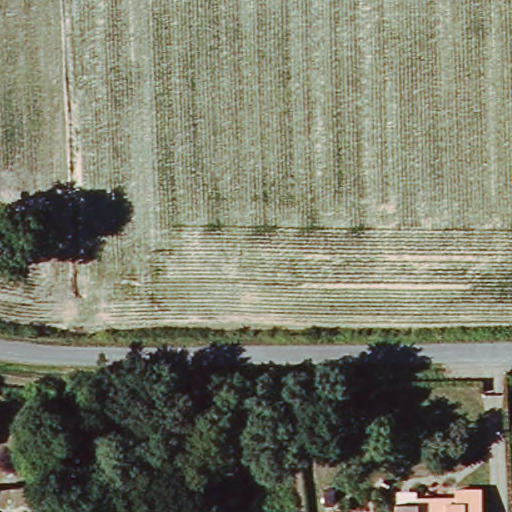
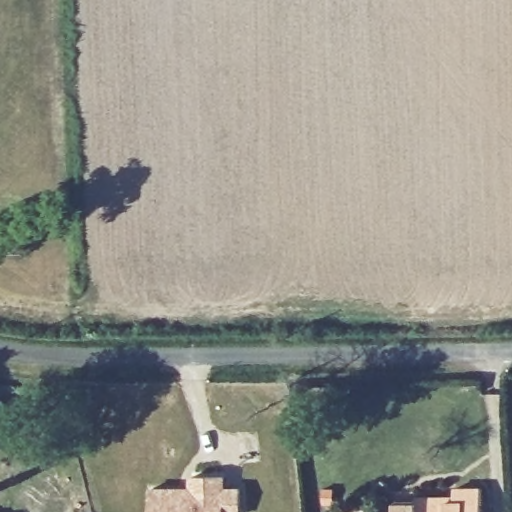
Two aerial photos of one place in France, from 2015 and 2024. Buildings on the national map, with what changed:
new [(191,486),(191,474),(226,473),(226,485),(242,485),(243,512),(151,512),(151,487),(191,486)]
unchanged [(421,508),(420,497),(456,497),(456,487),(485,487),(485,512),(397,512),(396,508),(421,508)]

